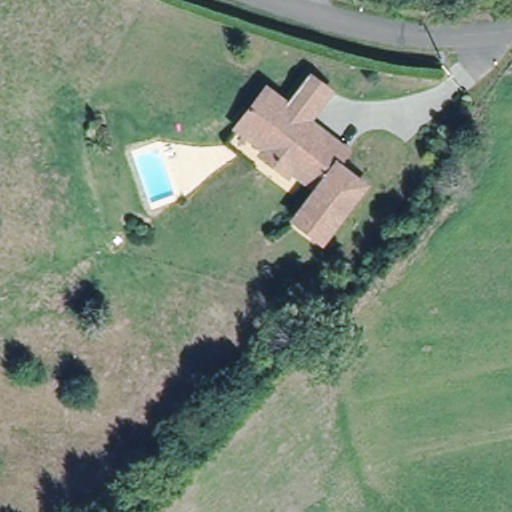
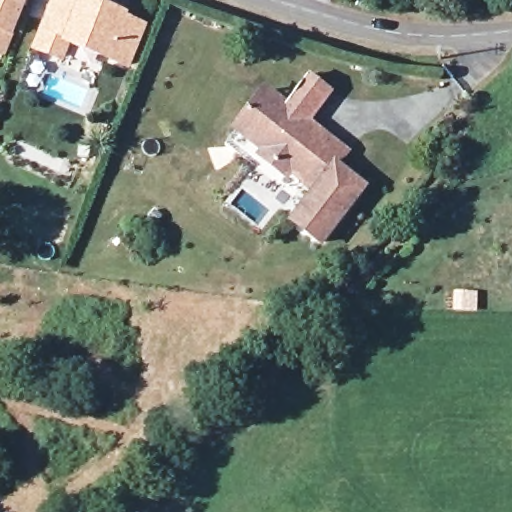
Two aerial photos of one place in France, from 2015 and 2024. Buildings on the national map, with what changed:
new [(0,53),(0,0),(28,0),(5,55),(0,53)]
new [(69,44),(62,61),(32,48),(51,0),(95,0),(129,13),(128,16),(145,25),(129,69),(69,44)]
unchanged [(308,73),(330,89),(307,119),(347,149),(337,163),(364,184),(321,239),(295,218),(318,187),(281,159),(280,161),(275,157),(276,154),(252,136),(238,125),(267,88),(281,99),(285,101),(308,73)]

